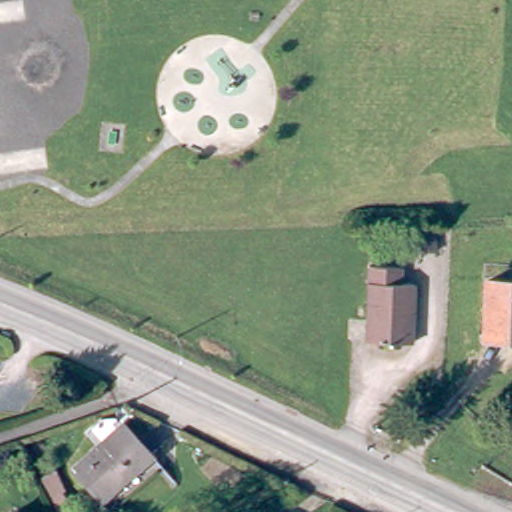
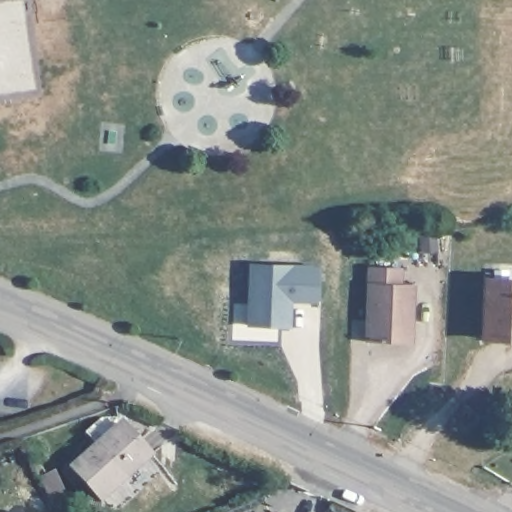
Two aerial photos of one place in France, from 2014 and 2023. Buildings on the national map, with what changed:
new [(318,304),(293,303),(292,327),(246,326),(248,262),(318,265),(318,304)]
unchanged [(398,266),(398,280),(411,282),(408,341),(363,340),(366,265),(398,266)]
unchanged [(512,281),(512,335),(487,337),(485,282),(512,281)]
unchanged [(150,453),(102,497),(73,465),(121,422),(150,453)]
unchanged [(27,512),(4,512),(17,501),(27,512)]

